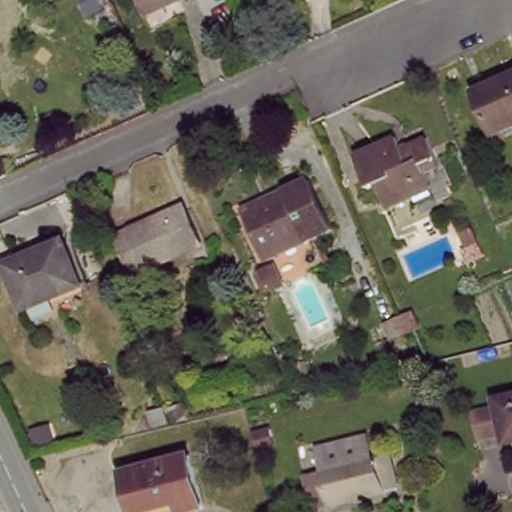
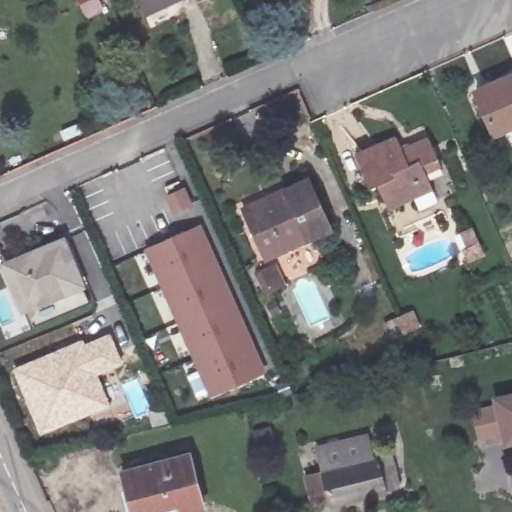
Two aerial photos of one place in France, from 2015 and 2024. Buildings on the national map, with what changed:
unchanged [(142,13),(136,0),(170,0),(142,13)]
unchanged [(494,130),(475,90),(512,73),(512,122),(494,130)]
unchanged [(402,140),(406,149),(432,140),(440,160),(427,165),(437,189),(415,198),(412,192),(387,205),(379,187),(367,191),(354,157),(402,140)]
unchanged [(331,232),(266,260),(246,210),(310,182),(331,232)]
demolished [(200,247),(134,275),(118,237),(184,209),(200,247)]
new [(213,393),(149,251),(201,227),(263,371),(213,393)]
unchanged [(88,286),(26,312),(7,267),(69,240),(88,286)]
new [(83,337),(85,341),(110,330),(124,363),(99,373),(111,405),(39,434),(12,367),(83,337)]
unchanged [(512,399),(512,437),(504,439),(496,402),(512,399)]
unchanged [(397,448),(404,485),(330,501),(322,464),(397,448)]
unchanged [(209,510),(200,512),(187,512),(185,502),(138,512),(128,512),(119,471),(197,453),(209,510)]

